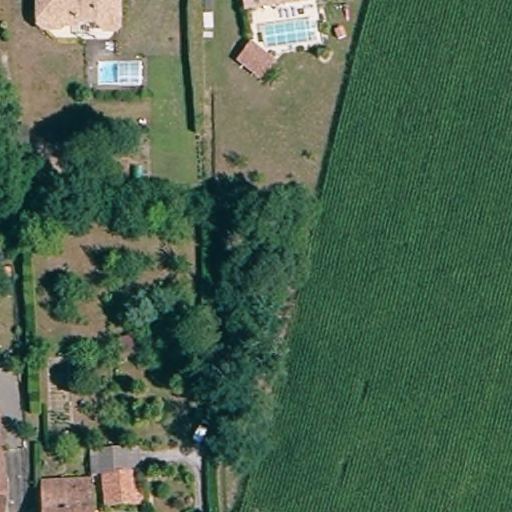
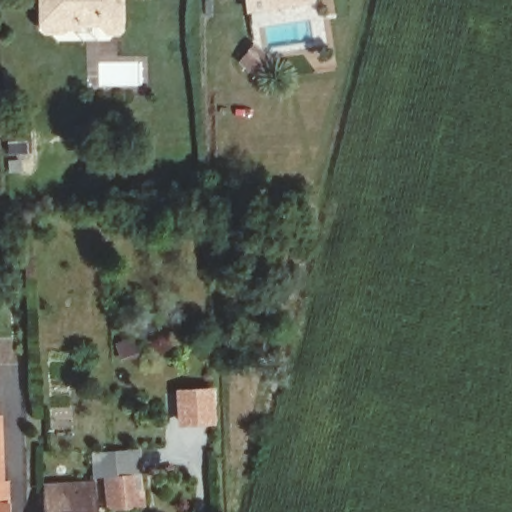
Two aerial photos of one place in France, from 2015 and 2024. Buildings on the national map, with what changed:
unchanged [(84,16),(78,11),(69,11),(69,19),(65,23),(49,24),(45,20),(44,0),(123,0),(124,21),(120,26),(110,26),(100,16),(100,31),(84,31),(84,16)]
unchanged [(266,2),(245,4),(245,0),(290,0),(266,2)]
unchanged [(267,65),(247,50),(258,37),(276,52),(267,65)]
unchanged [(6,138),(25,137),(26,152),(6,152),(6,138)]
new [(215,387),(217,426),(177,429),(174,390),(215,387)]
unchanged [(10,481),(10,512),(0,512),(0,446),(1,480),(10,481)]
unchanged [(103,476),(95,478),(95,455),(139,451),(144,503),(105,512),(103,476)]
unchanged [(95,512),(46,512),(46,483),(95,481),(95,512)]

